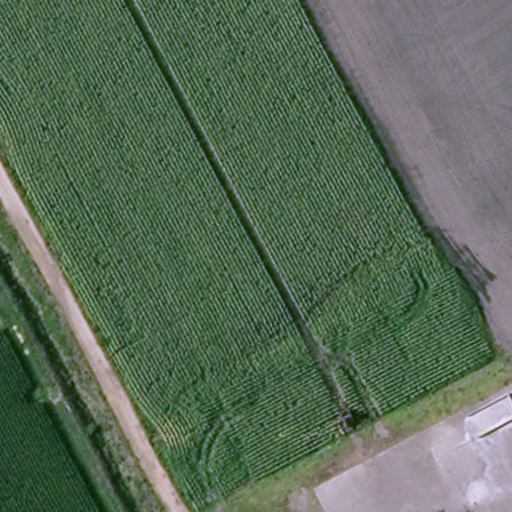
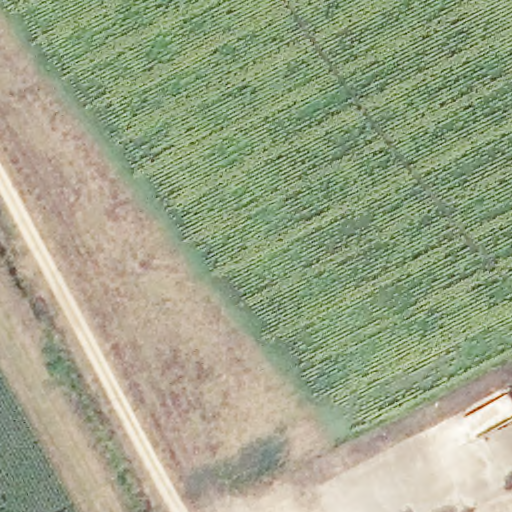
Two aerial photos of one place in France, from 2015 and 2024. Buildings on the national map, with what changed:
[]

